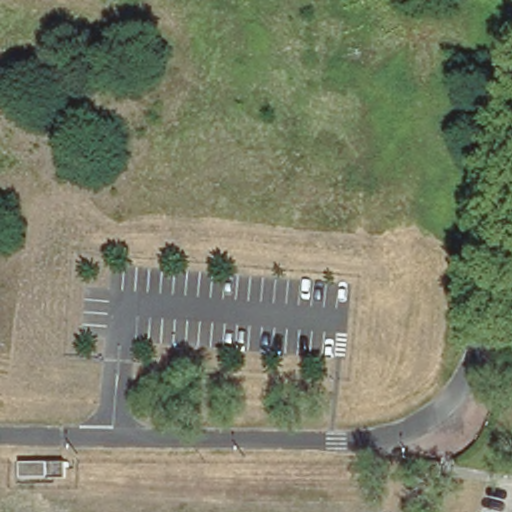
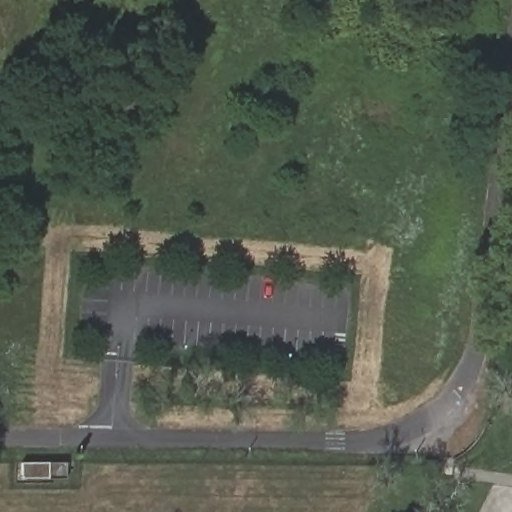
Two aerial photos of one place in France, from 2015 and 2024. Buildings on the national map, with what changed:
unchanged [(49,465),(47,478),(20,476),(21,462),(49,465)]

